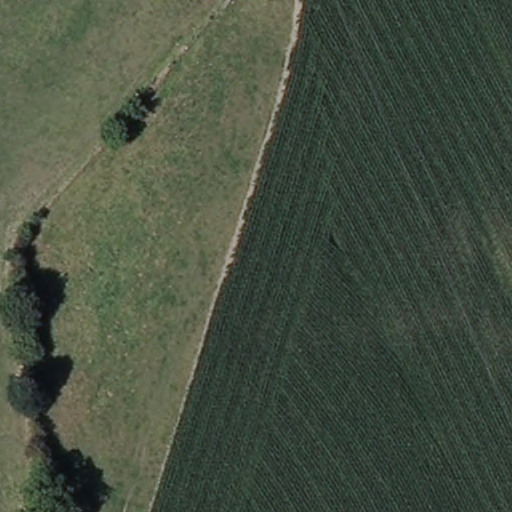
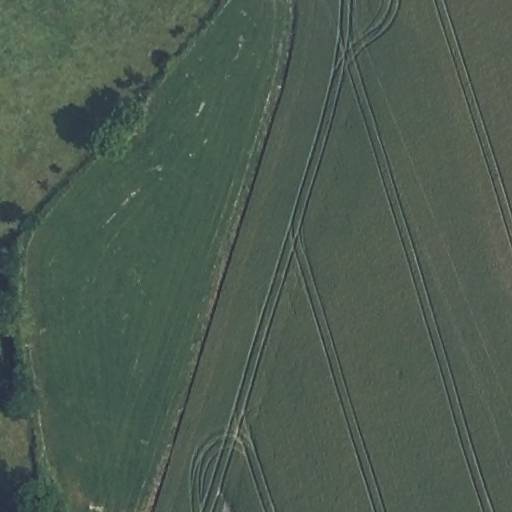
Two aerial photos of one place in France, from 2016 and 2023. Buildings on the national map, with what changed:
[]

